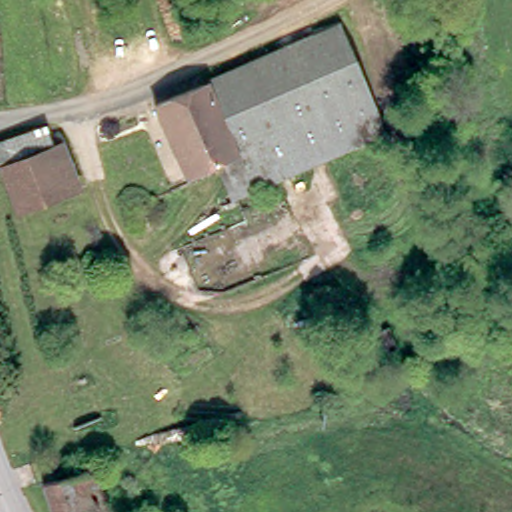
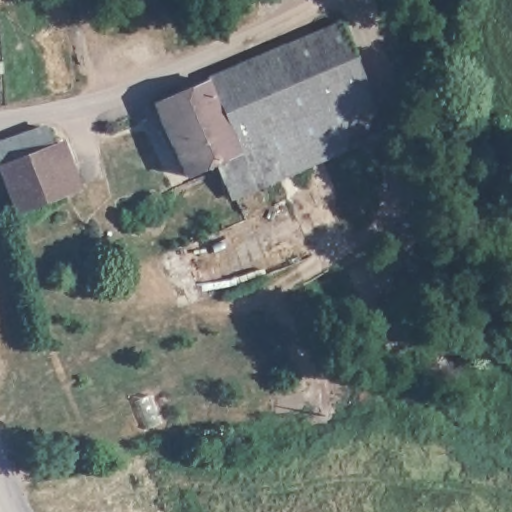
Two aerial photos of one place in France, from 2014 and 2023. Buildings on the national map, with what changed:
unchanged [(265,140),(222,160),(190,174),(158,99),(344,23),(383,113),(274,160),(265,140)]
unchanged [(140,114),(151,109),(156,117),(144,122),(140,114)]
unchanged [(67,141),(86,186),(23,212),(14,192),(0,157),(0,144),(49,123),(58,143),(67,141)]
unchanged [(222,160),(265,140),(274,160),(281,175),(237,194),(225,166),(222,160)]
demolished [(191,337),(178,321),(187,313),(201,329),(191,337)]
demolished [(93,470),(105,512),(54,512),(44,482),(61,478),(93,470)]

